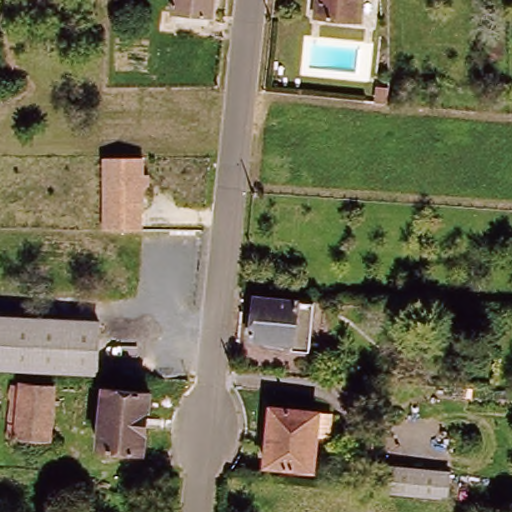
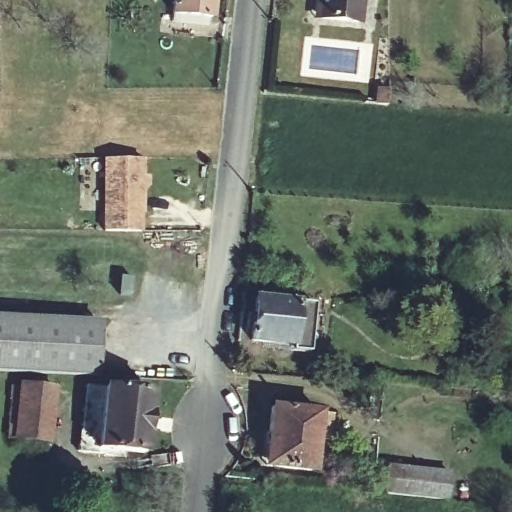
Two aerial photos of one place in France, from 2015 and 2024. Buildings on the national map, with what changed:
unchanged [(173,14),(174,0),(212,0),(211,17),(173,14)]
unchanged [(314,11),(315,0),(361,0),(359,15),(314,11)]
unchanged [(374,103),(376,87),(388,88),(388,104),(374,103)]
unchanged [(103,156),(143,157),(143,175),(149,175),(149,186),(144,186),(144,228),(104,226),(103,156)]
unchanged [(278,348),(278,342),(251,340),(254,298),(313,302),(309,350),(278,348)]
unchanged [(0,317),(96,321),(93,375),(0,370),(0,317)]
unchanged [(15,439),(20,385),(54,388),(50,442),(15,439)]
unchanged [(98,449),(104,387),(149,392),(143,453),(98,449)]
unchanged [(266,466),(270,407),(319,412),(331,413),(329,439),(316,437),(314,470),(266,466)]
unchanged [(386,491),(388,465),(449,471),(447,497),(386,491)]

